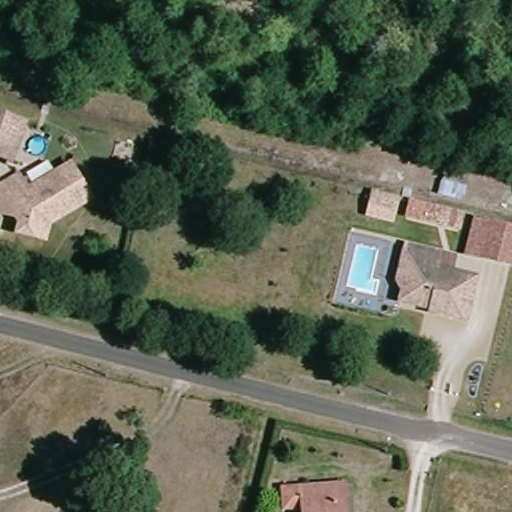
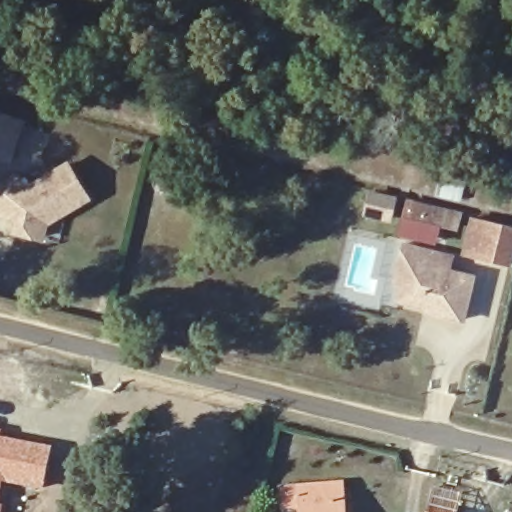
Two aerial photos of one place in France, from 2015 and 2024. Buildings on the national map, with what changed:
unchanged [(0,155),(0,117),(20,124),(8,157),(0,155)]
unchanged [(0,211),(0,193),(2,186),(22,174),(29,186),(34,184),(72,164),(91,200),(60,217),(57,214),(49,218),(45,239),(42,239),(18,231),(22,219),(0,211)]
unchanged [(392,204),(385,223),(362,216),(368,196),(392,204)]
unchanged [(460,224),(426,215),(430,202),(433,203),(464,210),(460,224)]
unchanged [(481,251),(470,247),(478,214),(490,217),(512,222),(512,259),(481,251)]
unchanged [(444,259),(455,262),(451,276),(475,283),(465,326),(430,316),(430,313),(400,304),(403,289),(397,287),(404,263),(407,249),(444,259)]
new [(0,434),(0,428),(1,428),(0,434)]
new [(41,492),(2,484),(0,496),(0,437),(51,447),(41,492)]
unchanged [(347,512),(306,512),(305,503),(285,504),(283,487),(303,485),(342,481),(347,512)]
new [(1,512),(0,512),(0,503),(3,504),(1,512)]

